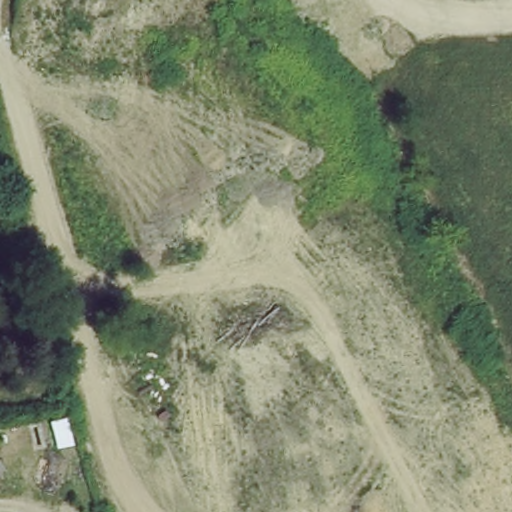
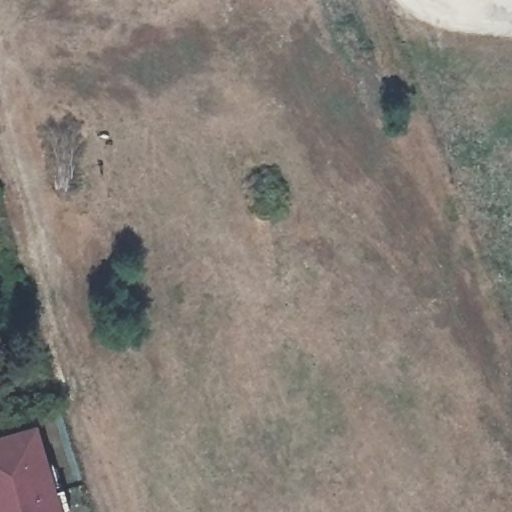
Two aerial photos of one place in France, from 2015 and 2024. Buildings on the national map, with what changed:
new [(35,426),(60,512),(0,512),(0,436),(35,426)]

